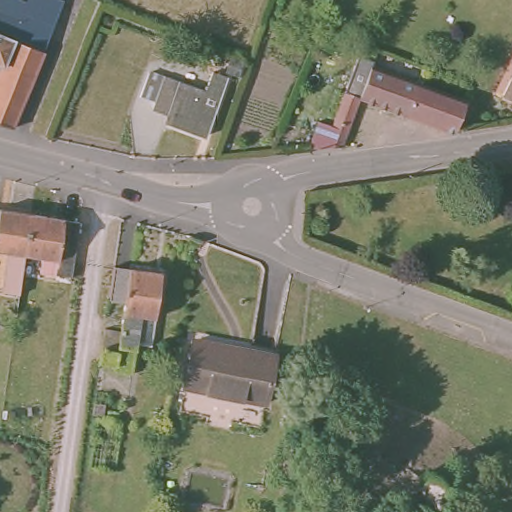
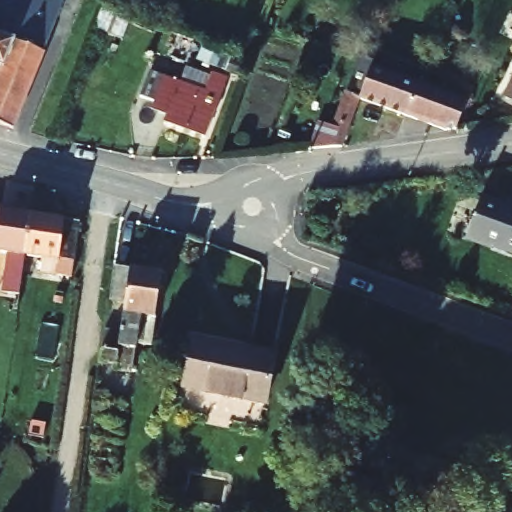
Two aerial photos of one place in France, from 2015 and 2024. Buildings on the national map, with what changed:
unchanged [(29,0),(44,0),(62,7),(43,56),(12,133),(0,129),(0,74),(2,70),(0,69),(0,19),(7,1),(14,4),(26,8),(29,0)]
unchanged [(376,70),(417,86),(406,116),(360,99),(343,147),(324,150),(307,150),(318,122),(331,128),(355,57),(372,64),(378,66),(376,70)]
unchanged [(512,66),(512,102),(498,95),(512,66)]
unchanged [(206,77),(221,82),(201,141),(159,126),(162,119),(147,114),(149,107),(135,102),(144,77),(200,97),(206,77)]
unchanged [(455,131),(445,131),(406,116),(417,86),(466,104),(455,131)]
new [(480,194),(512,206),(512,256),(466,240),(480,194)]
unchanged [(19,297),(2,294),(7,254),(0,253),(0,211),(30,216),(24,257),(19,297)]
unchanged [(72,278),(40,274),(42,259),(24,257),(30,216),(80,222),(74,262),(72,278)]
unchanged [(160,323),(145,321),(137,377),(121,375),(122,370),(106,367),(108,355),(123,357),(130,307),(115,305),(119,272),(167,278),(160,323)]
unchanged [(265,403),(185,387),(193,340),(274,357),(265,403)]
unchanged [(105,415),(94,413),(95,403),(106,405),(105,415)]
unchanged [(448,501),(449,506),(449,510),(448,512),(437,512),(437,509),(436,504),(440,501),(442,501),(448,501)]

